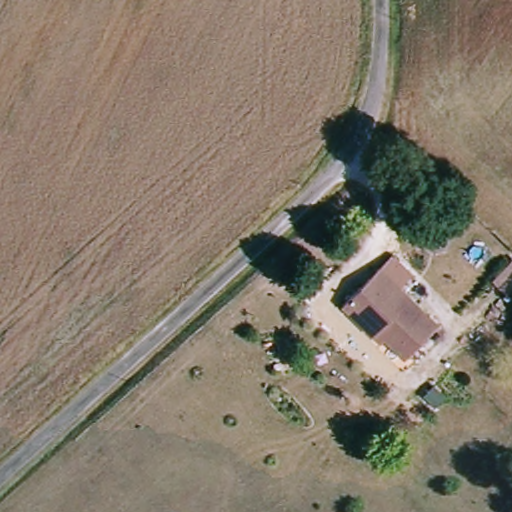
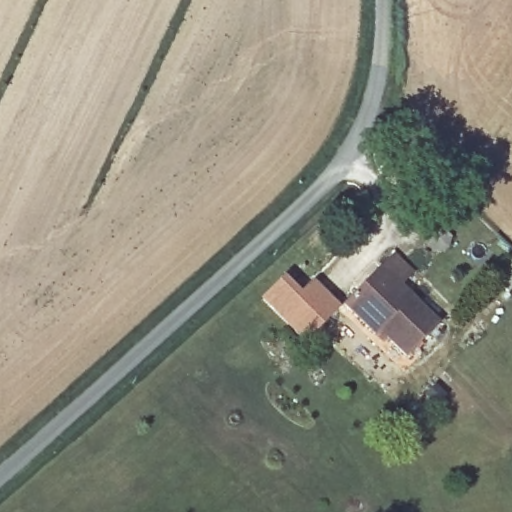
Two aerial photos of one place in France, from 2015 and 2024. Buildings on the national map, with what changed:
unchanged [(381,324),(375,328),(347,299),(386,264),(443,322),(410,354),(381,324)]
new [(282,277),(298,294),(311,282),(337,308),(302,342),(258,300),(282,277)]

